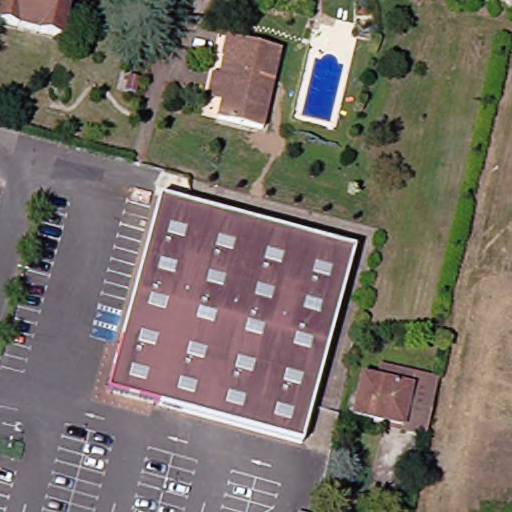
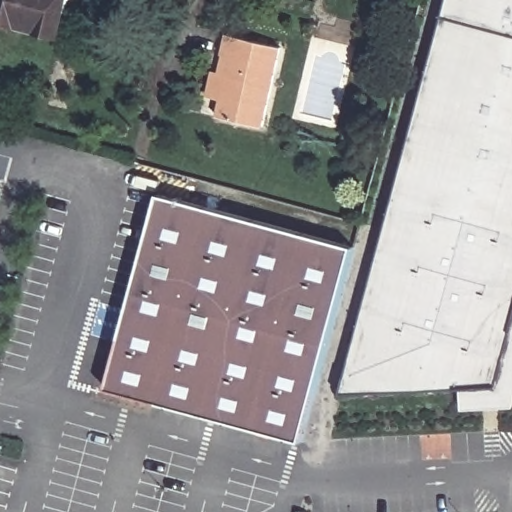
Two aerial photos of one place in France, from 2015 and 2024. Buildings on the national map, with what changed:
unchanged [(0,18),(4,0),(70,0),(61,35),(0,18)]
new [(447,0),(512,0),(512,35),(443,15),(447,0)]
demolished [(512,0),(512,7),(470,0),(512,0)]
new [(443,15),(512,35),(512,332),(498,385),(343,393),(443,15)]
unchanged [(214,79),(220,80),(224,60),(229,40),(245,44),(283,52),(265,130),(218,120),(222,105),(209,101),(214,79)]
unchanged [(355,247),(325,362),(304,443),(108,391),(159,196),(355,247)]
demolished [(399,426),(400,421),(366,414),(367,409),(354,406),(361,375),(382,379),(409,385),(411,375),(435,380),(424,432),(399,426)]
unchanged [(304,508),(314,510),(313,512),(302,512),(304,508)]

